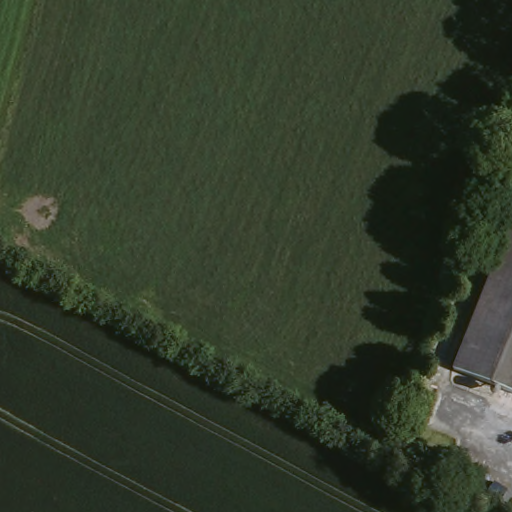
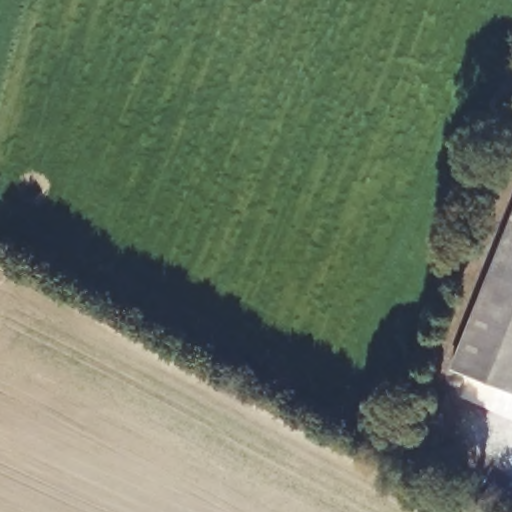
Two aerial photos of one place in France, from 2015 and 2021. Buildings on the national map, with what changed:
unchanged [(450,370),(512,216),(512,392),(450,370)]

